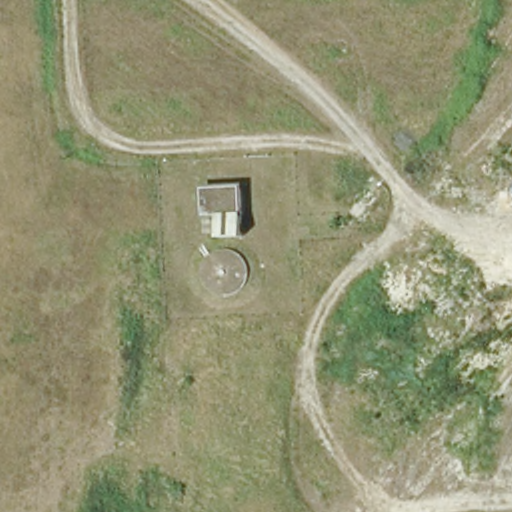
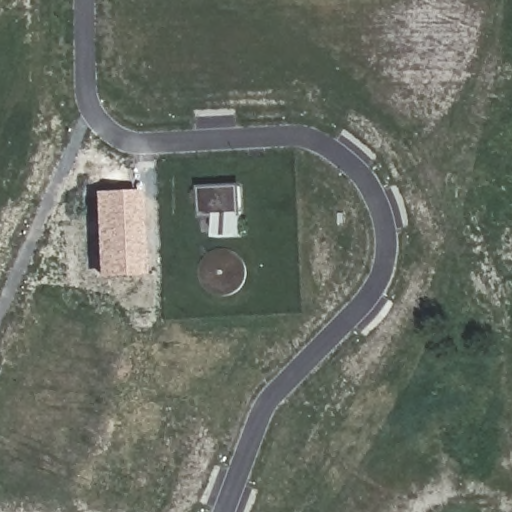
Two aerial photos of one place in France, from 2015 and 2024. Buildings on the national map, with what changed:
new [(141,189),(145,277),(97,277),(93,192),(141,189)]
unchanged [(244,237),(221,241),(222,220),(204,221),(203,191),(240,189),(244,237)]

